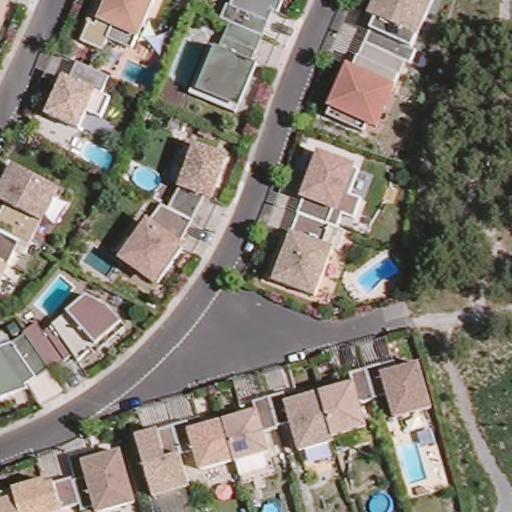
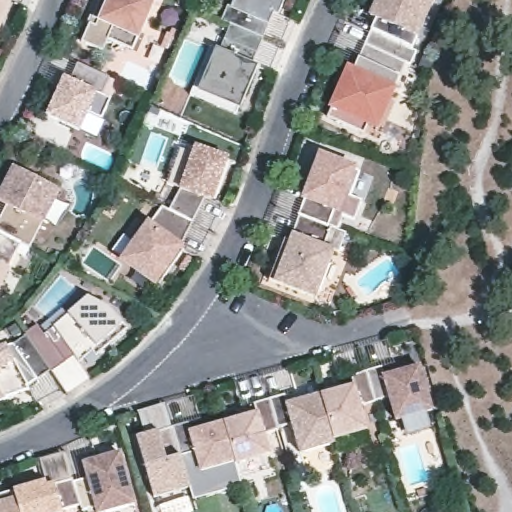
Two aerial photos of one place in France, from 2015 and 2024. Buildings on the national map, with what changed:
unchanged [(0,21),(0,0),(8,0),(0,21)]
unchanged [(131,51),(104,37),(98,49),(77,41),(88,16),(96,20),(104,0),(152,0),(137,39),(131,51)]
unchanged [(277,13),(273,11),(235,111),(195,93),(213,47),(218,50),(227,30),(216,25),(225,6),(229,8),(232,0),(282,0),(277,13)]
unchanged [(405,63),(363,45),(373,21),(365,18),(373,0),(432,0),(405,63)]
unchanged [(365,127),(363,135),(322,118),(342,66),(352,70),(355,59),(397,75),(377,130),(365,127)]
unchanged [(44,114),(60,78),(68,82),(78,65),(107,81),(98,95),(107,100),(96,120),(86,114),(76,131),(44,114)]
unchanged [(118,261),(146,220),(148,223),(160,207),(166,211),(179,190),(194,145),(228,160),(212,203),(204,199),(194,225),(189,223),(177,245),(182,249),(154,287),(118,261)]
unchanged [(315,151),(359,166),(348,196),(359,201),(352,218),(340,214),(324,251),(288,236),(315,151)]
unchanged [(3,208),(0,206),(0,189),(10,168),(58,192),(27,251),(18,244),(0,280),(0,213),(3,208)]
unchanged [(264,276),(282,234),(288,236),(324,251),(331,254),(313,298),(264,276)]
unchanged [(14,346),(33,331),(42,338),(86,297),(108,308),(122,324),(77,366),(72,359),(28,382),(20,393),(0,400),(0,350),(14,346)]
unchanged [(393,421),(388,402),(380,376),(418,366),(431,413),(393,421)]
unchanged [(299,454),(290,423),(284,405),(349,385),(347,376),(378,367),(380,376),(388,402),(360,410),(364,432),(299,454)]
unchanged [(263,432),(269,453),(198,474),(192,450),(187,431),(254,413),(251,405),(281,396),(284,405),(290,423),(263,432)]
unchanged [(134,439),(185,423),(187,431),(192,450),(177,455),(187,488),(150,499),(134,439)]
unchanged [(8,493),(47,482),(48,486),(70,479),(72,483),(84,480),(79,462),(117,452),(134,506),(110,512),(93,512),(92,506),(79,509),(78,504),(56,510),(56,512),(0,512),(0,503),(9,500),(8,493)]

